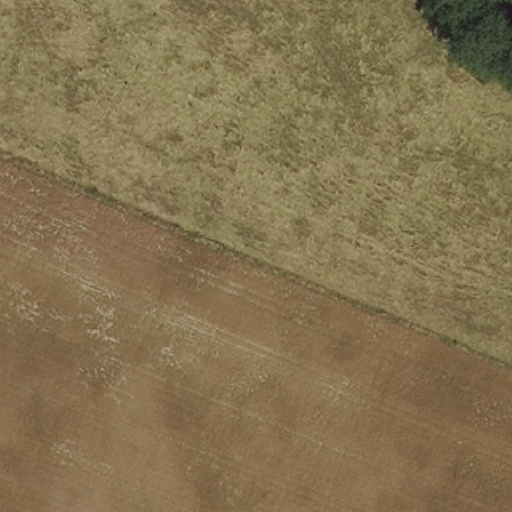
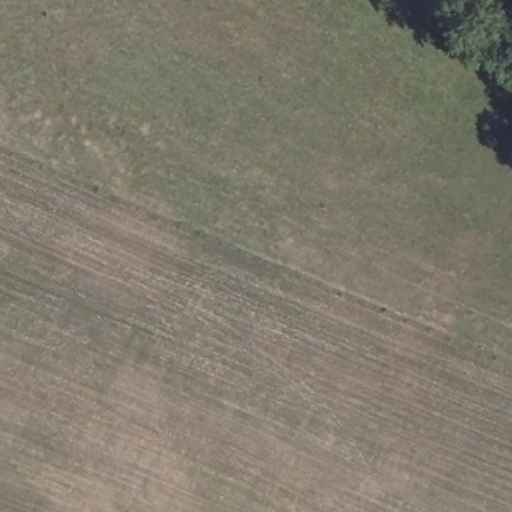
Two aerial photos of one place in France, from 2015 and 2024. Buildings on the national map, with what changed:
[]

